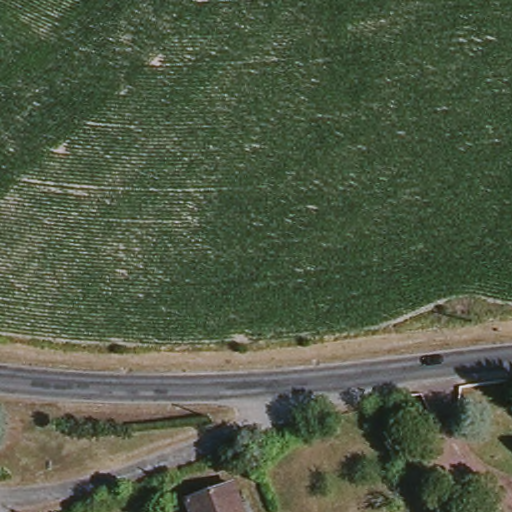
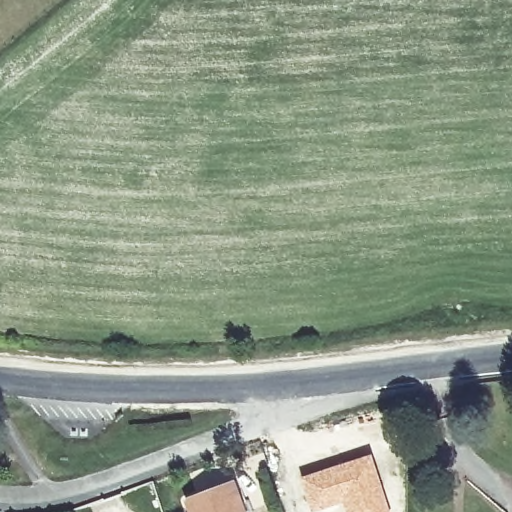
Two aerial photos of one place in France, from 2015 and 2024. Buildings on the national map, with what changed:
new [(370,453),(390,512),(345,512),(342,503),(314,512),(310,512),(300,476),(370,453)]
unchanged [(186,504),(234,486),(243,512),(189,512),(186,504)]

